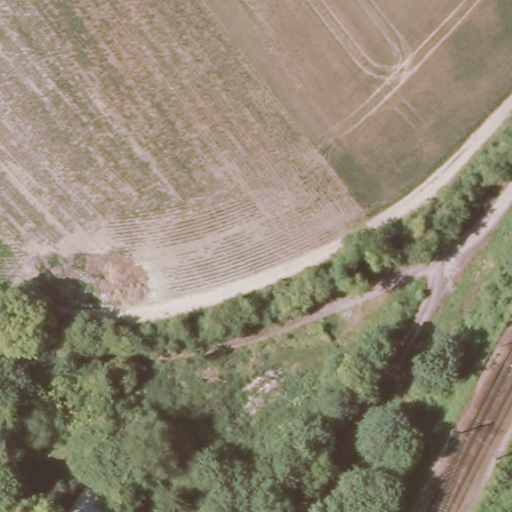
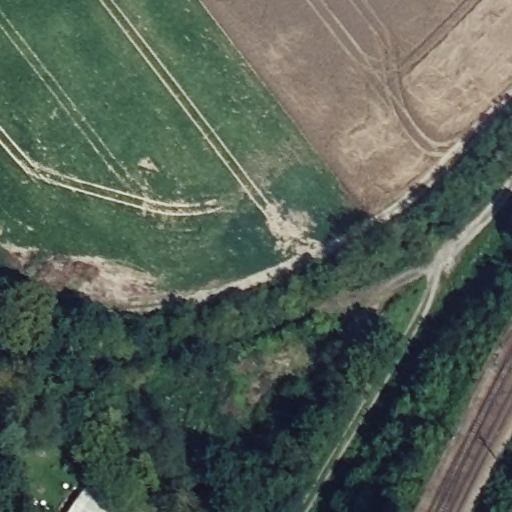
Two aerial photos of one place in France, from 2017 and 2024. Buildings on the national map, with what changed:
unchanged [(90,512),(63,512),(72,499),(90,512)]
unchanged [(110,512),(95,512),(101,505),(110,512)]

